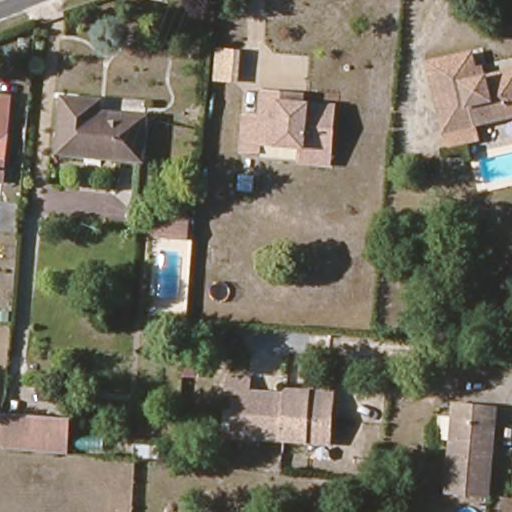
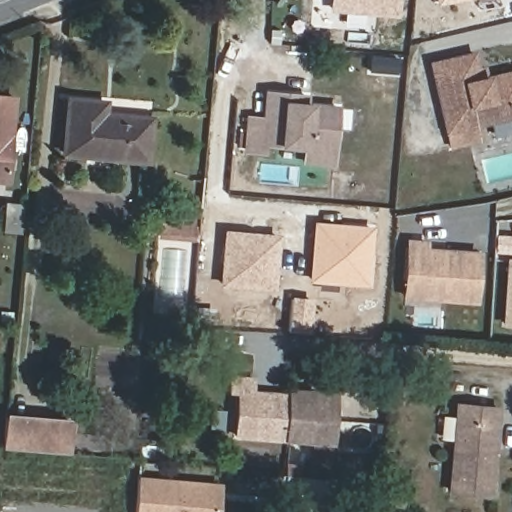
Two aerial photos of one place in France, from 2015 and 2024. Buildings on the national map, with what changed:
new [(400,0),(399,18),(329,11),(330,0),(400,0)]
new [(436,0),(463,0),(437,5),(436,0)]
new [(219,49),(238,51),(235,84),(216,83),(219,49)]
unchanged [(451,147),(447,133),(432,64),(475,54),(481,80),(512,73),(512,118),(477,125),(480,140),(451,147)]
unchanged [(0,186),(0,93),(15,94),(11,143),(7,187),(0,186)]
unchanged [(310,163),(311,148),(269,145),(269,153),(251,151),(253,118),(269,119),(272,94),(312,96),(312,105),(344,108),(340,150),(339,165),(310,163)]
unchanged [(147,161),(64,154),(69,99),(106,103),(105,115),(151,119),(147,161)]
unchanged [(21,234),(4,233),(7,204),(23,205),(21,234)]
unchanged [(193,240),(157,238),(159,213),(195,217),(193,240)]
new [(313,222),(374,227),(369,287),(309,283),(313,222)]
new [(219,287),(223,229),(280,234),(275,290),(219,287)]
new [(405,243),(422,244),(422,252),(442,253),(475,255),(472,302),(417,299),(402,297),(403,282),(405,243)]
new [(512,262),(512,325),(500,324),(505,261),(512,262)]
unchanged [(296,397),(318,399),(318,391),(342,392),(341,406),(338,449),(241,442),(245,398),(236,398),(237,384),(259,385),(257,399),(295,401),(296,397)]
unchanged [(501,501),(461,497),(468,411),(509,414),(501,501)]
unchanged [(69,456),(19,452),(10,451),(3,450),(6,417),(72,422),(69,456)]
new [(137,475),(188,479),(188,484),(190,484),(191,479),(221,483),(219,512),(134,512),(137,475)]
new [(294,500),(296,480),(331,484),(329,504),(294,500)]

